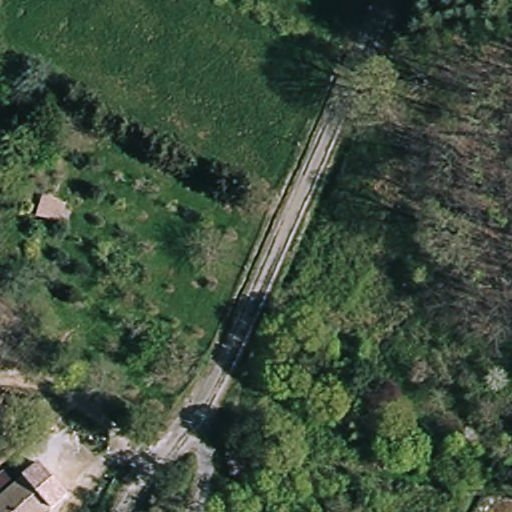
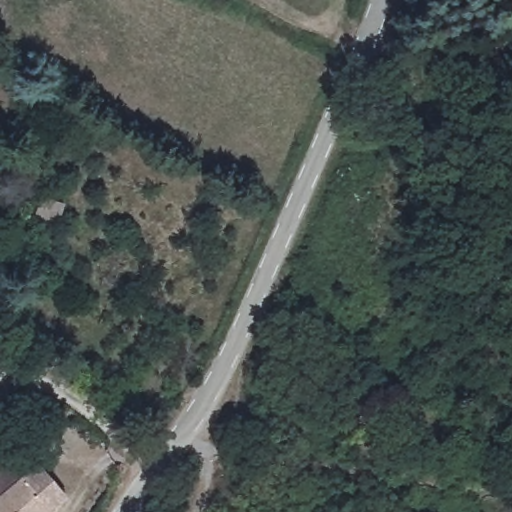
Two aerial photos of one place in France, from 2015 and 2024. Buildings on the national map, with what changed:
unchanged [(42,197),(65,205),(62,224),(36,216),(42,197)]
unchanged [(0,501),(0,468),(7,463),(22,482),(47,512),(0,512),(0,501)]

